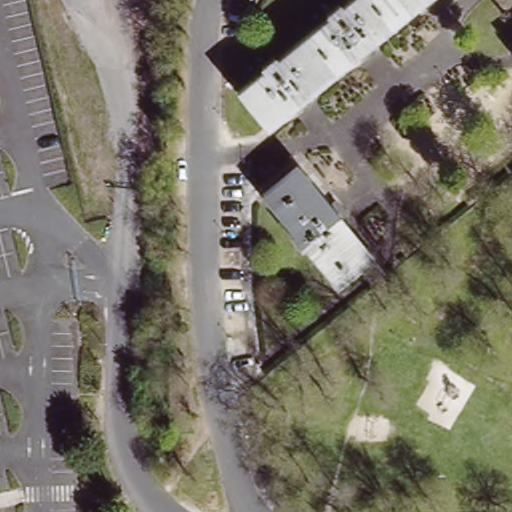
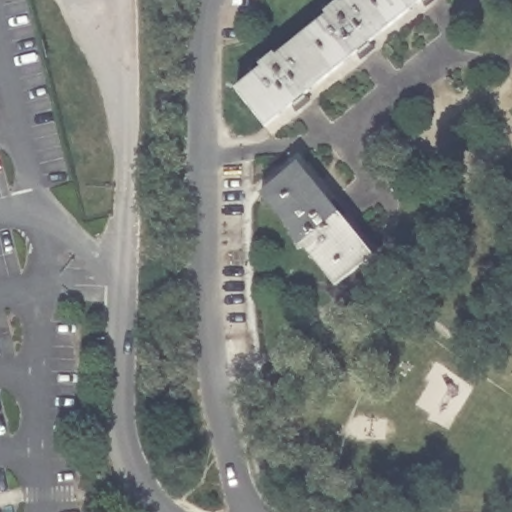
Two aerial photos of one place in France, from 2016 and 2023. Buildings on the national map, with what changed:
unchanged [(304,95),(307,99),(291,112),(288,108),(261,130),(232,96),(260,74),(256,70),(272,57),(276,61),(324,23),(320,20),(336,7),(339,11),(352,0),(434,0),(422,10),(417,5),(369,43),(377,51),(361,64),(354,56),(304,95)]
unchanged [(310,257),(297,242),(300,239),(270,203),(305,174),(335,210),(340,206),(352,222),(349,226),(378,262),(343,291),(313,255),(310,257)]

